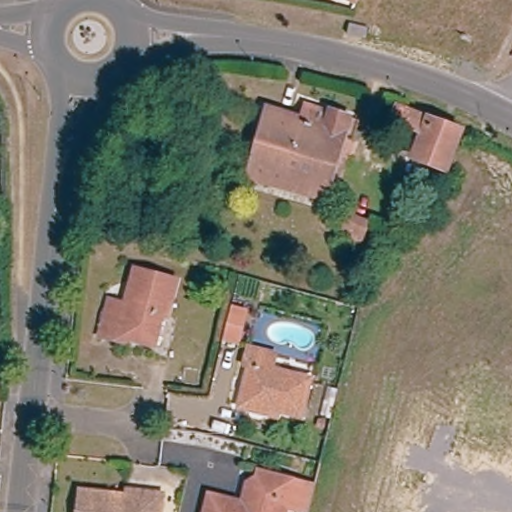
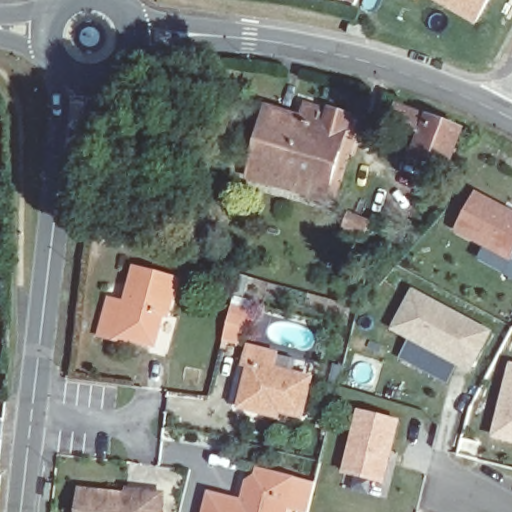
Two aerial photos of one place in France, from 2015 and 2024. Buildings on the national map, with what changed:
new [(477,27),(429,0),(492,0),(477,27)]
unchanged [(303,117),(307,106),(334,113),(335,110),(352,116),(327,199),(248,176),(269,108),(303,117)]
unchanged [(440,169),(410,157),(419,135),(387,121),(394,106),(455,130),(440,169)]
new [(473,191),(512,211),(512,274),(503,269),(478,256),(485,242),(454,226),(473,191)]
unchanged [(108,302),(124,306),(133,271),(174,281),(166,315),(162,315),(154,345),(130,339),(125,342),(99,335),(108,302)]
new [(391,330),(412,289),(493,332),(471,373),(391,330)]
unchanged [(244,310),(236,343),(221,339),(227,317),(229,307),(244,310)]
unchanged [(266,418),(241,413),(253,370),(247,368),(251,352),(281,359),(278,373),(313,382),(303,421),(282,416),(280,421),(266,418)]
new [(508,362),(512,363),(512,444),(490,439),(508,362)]
unchanged [(358,412),(398,421),(383,482),(344,472),(358,412)]
unchanged [(242,504),(247,482),(256,477),(257,474),(313,487),(308,512),(282,506),(281,512),(205,512),(209,496),(242,504)]
unchanged [(132,495),(132,490),(151,491),(167,493),(165,512),(83,512),(85,490),(132,495)]

